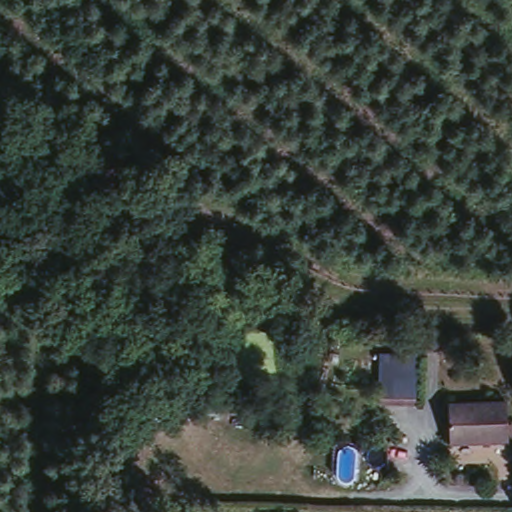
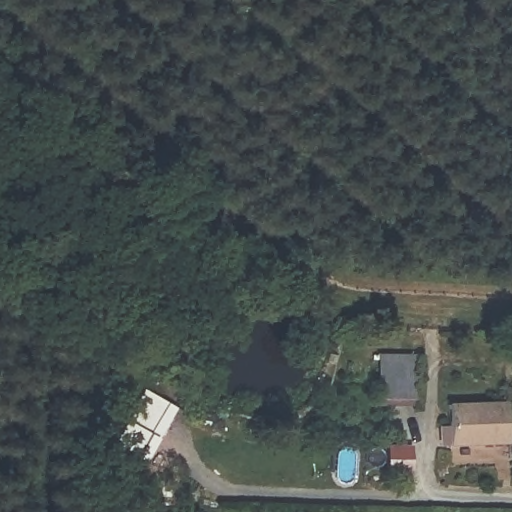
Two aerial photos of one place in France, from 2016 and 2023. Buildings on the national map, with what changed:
unchanged [(425,354),(421,398),(382,396),(385,350),(425,354)]
unchanged [(446,394),(505,395),(505,438),(445,440),(446,394)]

